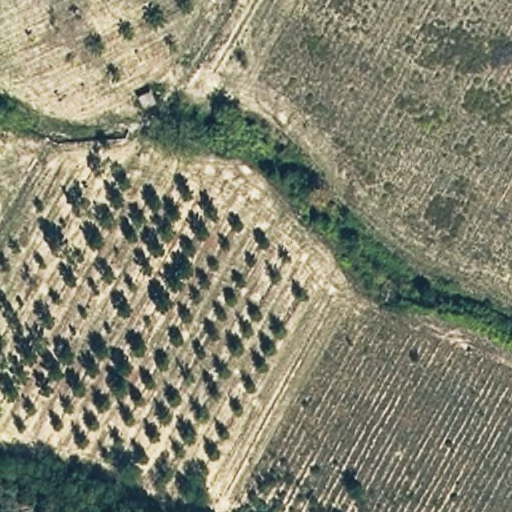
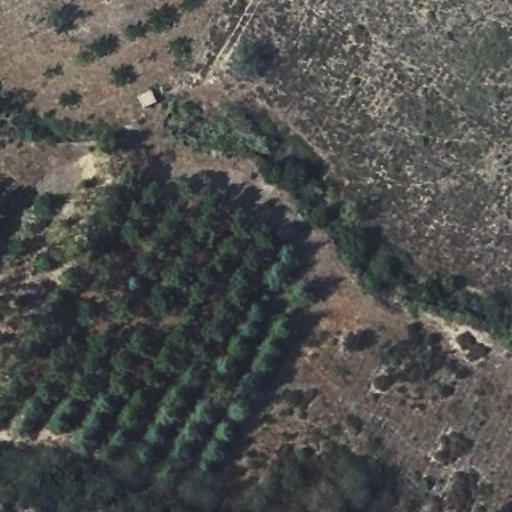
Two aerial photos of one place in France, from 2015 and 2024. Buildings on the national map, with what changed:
unchanged [(154,95),(159,109),(141,114),(138,101),(154,95)]

